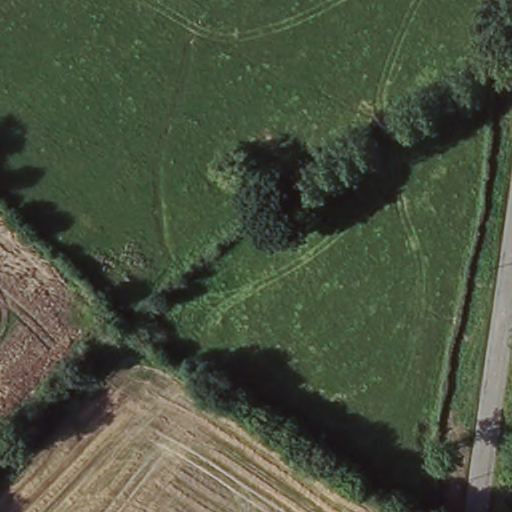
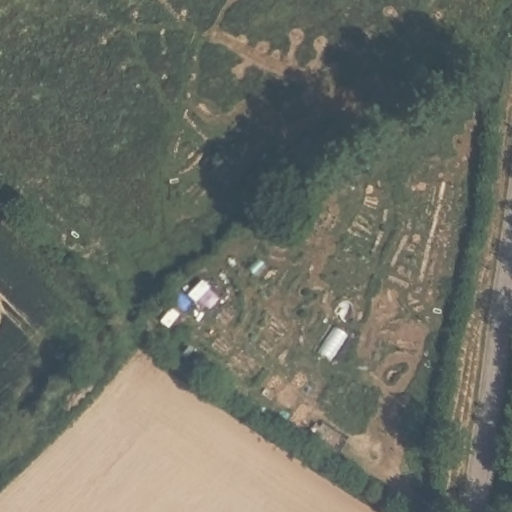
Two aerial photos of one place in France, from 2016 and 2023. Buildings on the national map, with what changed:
[]

